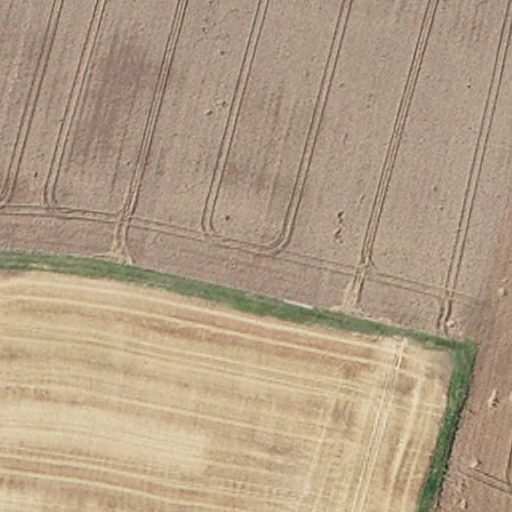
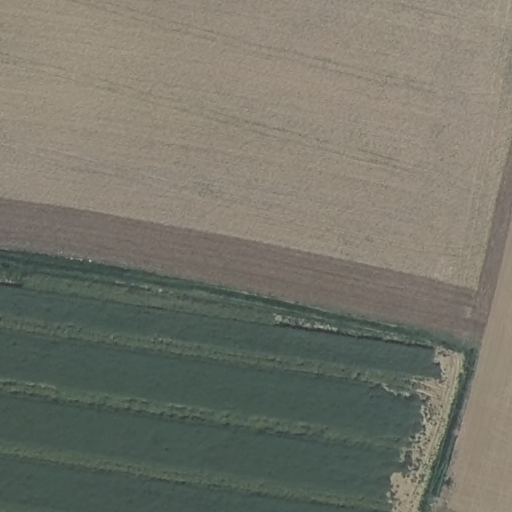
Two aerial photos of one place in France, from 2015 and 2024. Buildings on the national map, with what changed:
[]

